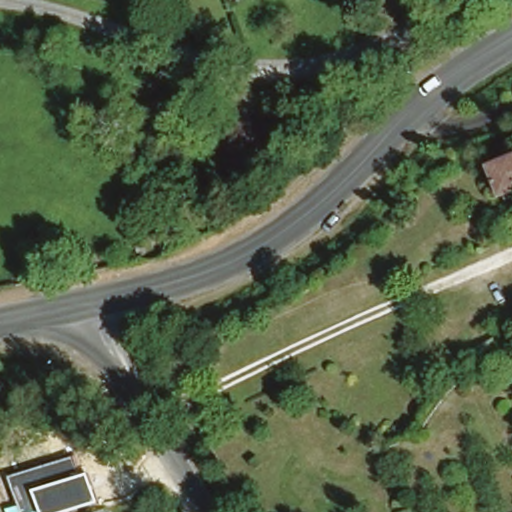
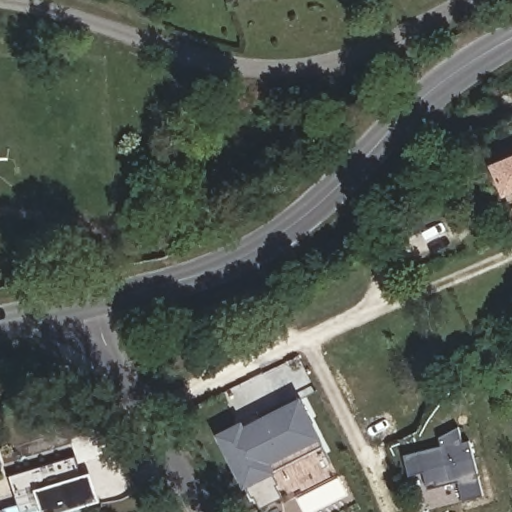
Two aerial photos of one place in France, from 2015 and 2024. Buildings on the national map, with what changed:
unchanged [(512,183),(502,157),(504,156),(512,153),(512,183)]
unchanged [(190,361),(169,370),(157,343),(177,333),(190,361)]
new [(282,497),(258,510),(219,434),(242,422),(245,425),(300,396),(323,448),(270,474),(282,497)]
new [(441,445),(439,437),(459,426),(463,442),(469,440),(484,495),(461,500),(457,481),(429,489),(424,472),(410,476),(405,455),(441,445)]
unchanged [(41,512),(41,510),(35,512),(26,512),(16,477),(80,457),(86,473),(92,471),(101,501),(69,512),(41,512)]

